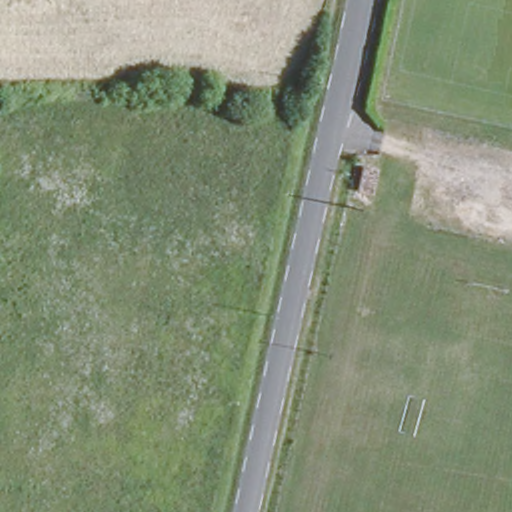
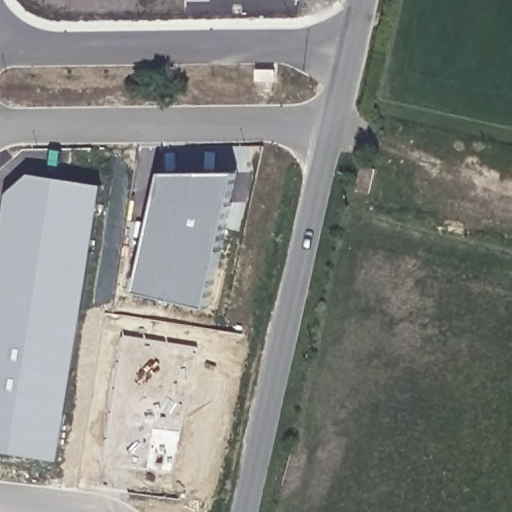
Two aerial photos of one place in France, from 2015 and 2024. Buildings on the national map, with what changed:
new [(162,172),(237,170),(205,305),(132,289),(162,172)]
new [(60,459),(0,451),(0,233),(6,193),(29,172),(103,183),(60,459)]

